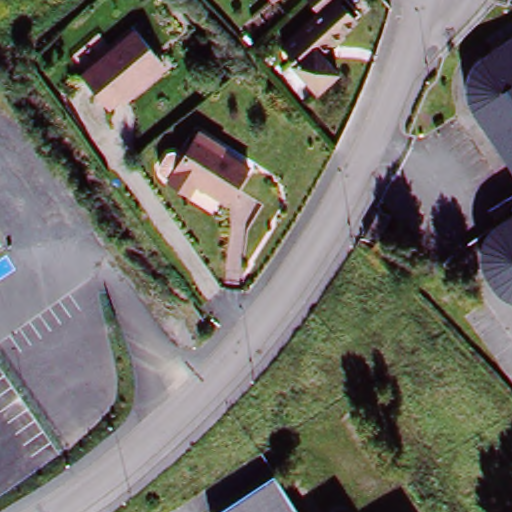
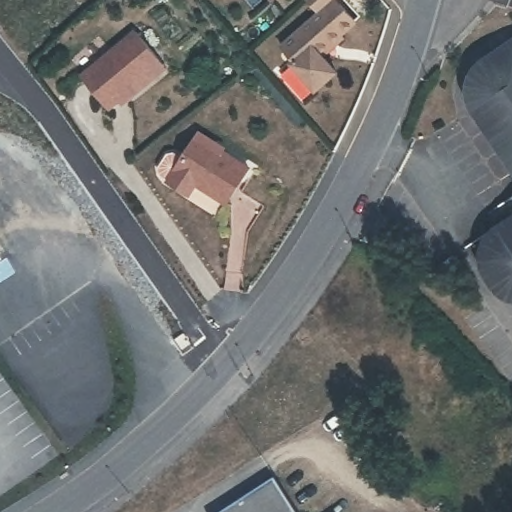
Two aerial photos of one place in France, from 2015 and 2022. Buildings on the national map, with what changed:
unchanged [(276,6),(270,0),(282,0),(276,6)]
unchanged [(307,0),(337,0),(356,23),(319,56),(335,75),(315,93),(291,66),(295,62),(282,47),(319,13),(307,0)]
unchanged [(122,108),(118,103),(107,112),(79,77),(133,32),(162,67),(166,71),(122,108)]
unchanged [(467,103),(466,98),(466,94),(467,89),(467,85),(468,80),(470,76),(472,72),(512,43),(512,169),(468,107),(467,103)]
unchanged [(228,151),(227,153),(253,170),(229,207),(200,188),(194,198),(171,184),(203,134),(228,151)]
unchanged [(370,231),(360,226),(374,200),(376,196),(387,203),(382,209),(370,231)]
unchanged [(495,279),(490,262),(492,246),(498,237),(503,234),(512,227),(512,299),(506,294),(495,279)]
unchanged [(294,512),(227,512),(273,481),(294,512)]

